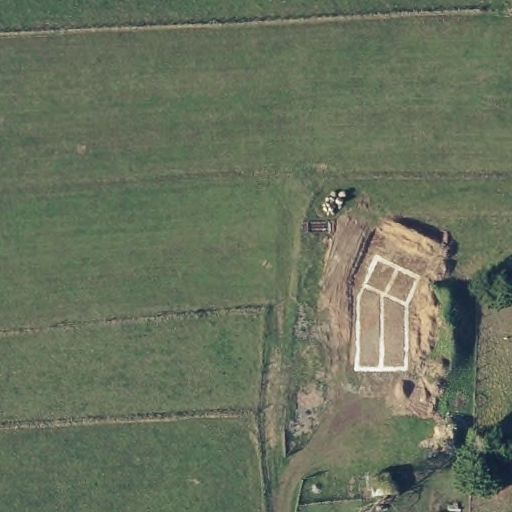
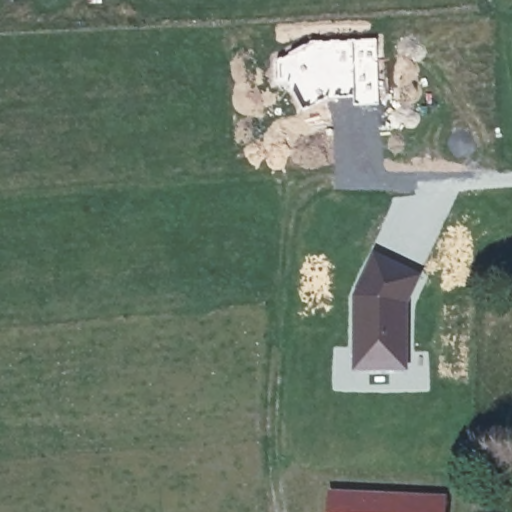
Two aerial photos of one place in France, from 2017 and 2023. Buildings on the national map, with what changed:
new [(354,372),(355,298),(374,254),(423,279),(409,307),(409,373),(354,372)]
new [(330,493),(446,497),(446,512),(329,512),(330,493)]

